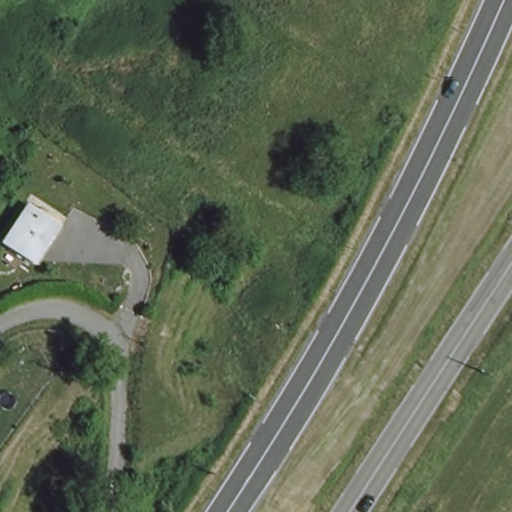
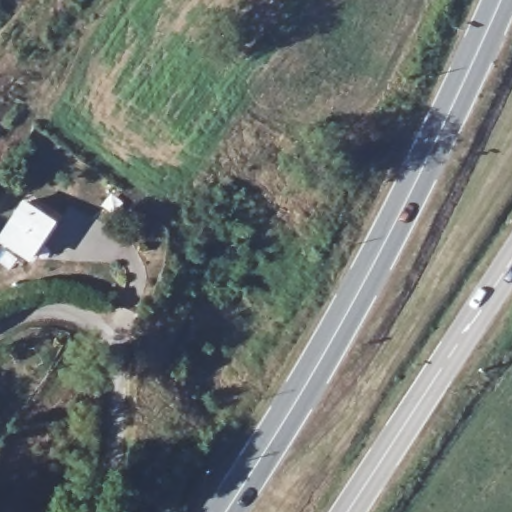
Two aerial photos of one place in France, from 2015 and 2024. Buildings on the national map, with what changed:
unchanged [(0,238),(20,204),(56,224),(30,264),(0,248),(0,238)]

